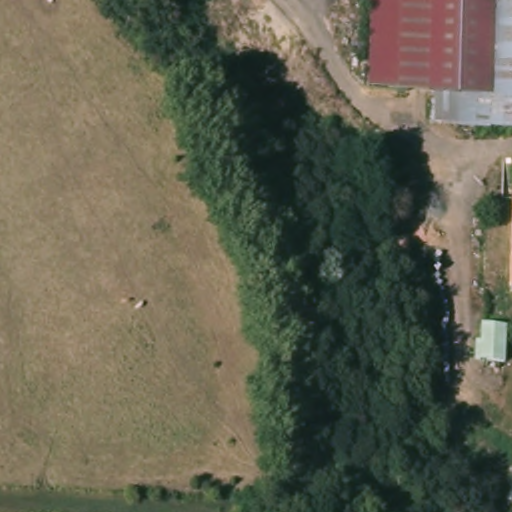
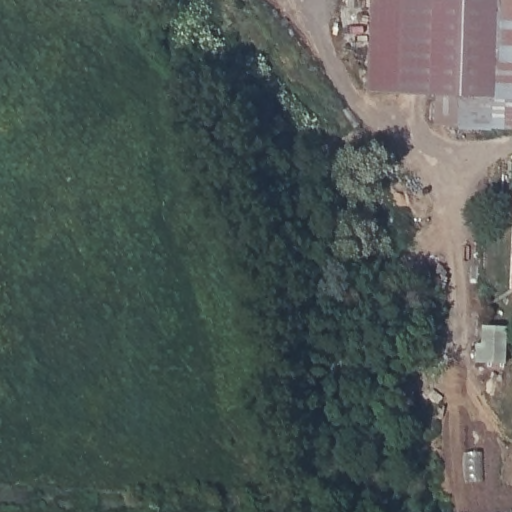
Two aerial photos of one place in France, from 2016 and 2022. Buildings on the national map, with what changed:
unchanged [(408,80),(407,89),(367,89),(370,0),(424,0),(422,81),(408,80)]
unchanged [(430,126),(432,97),(421,97),(422,81),(424,0),(462,0),(456,124),(430,126)]
unchanged [(456,124),(462,0),(512,0),(512,127),(456,124)]
unchanged [(512,193),(512,289),(509,288),(511,224),(512,193)]

